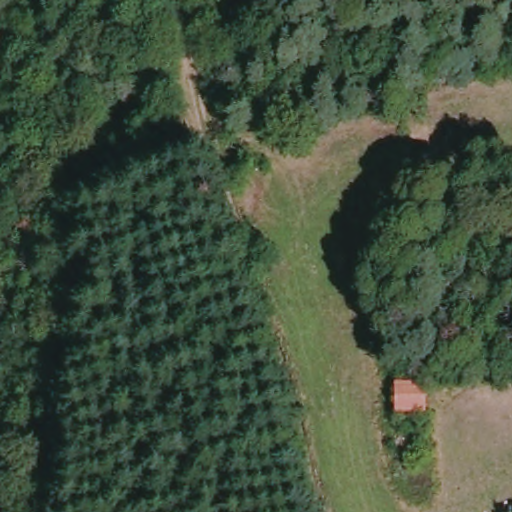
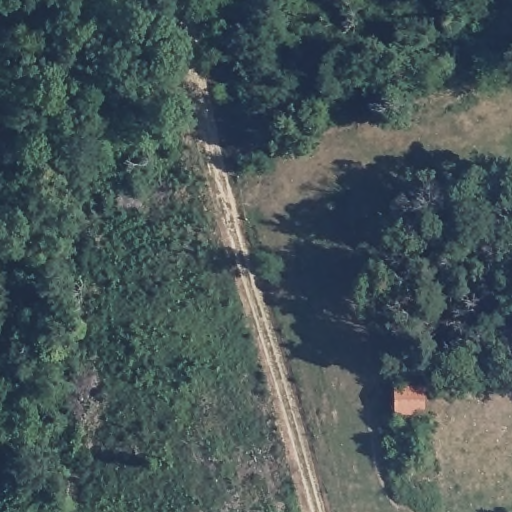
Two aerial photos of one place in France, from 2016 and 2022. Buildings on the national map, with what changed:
unchanged [(396,390),(428,390),(428,418),(397,419),(396,390)]

